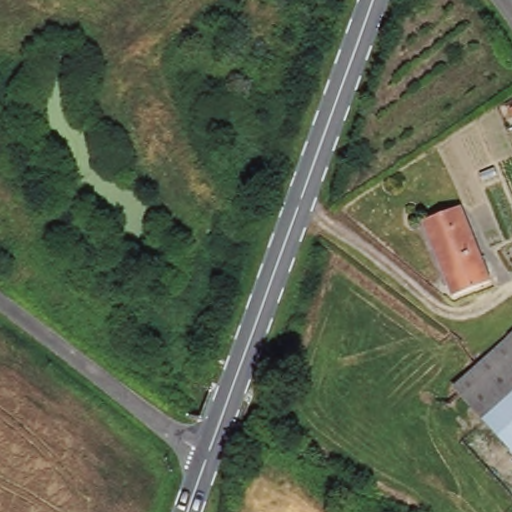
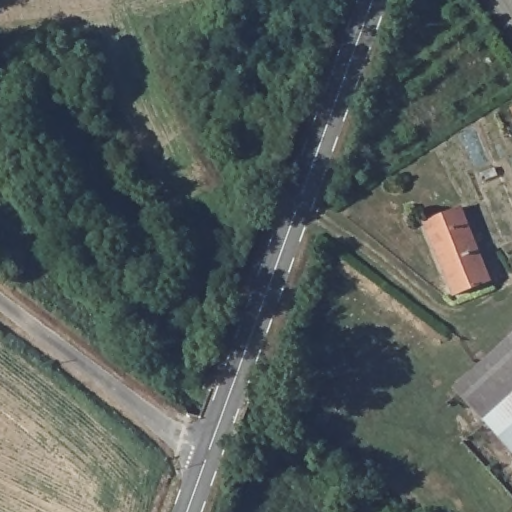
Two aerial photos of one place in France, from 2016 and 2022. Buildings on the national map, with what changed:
unchanged [(459,205),(486,277),(447,292),(418,221),(459,205)]
unchanged [(512,452),(452,387),(512,334),(512,452)]

